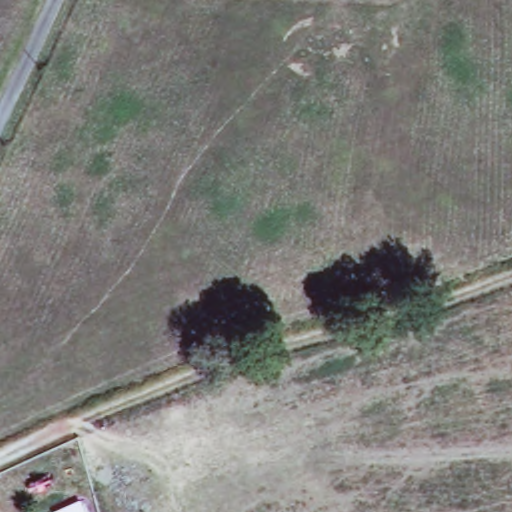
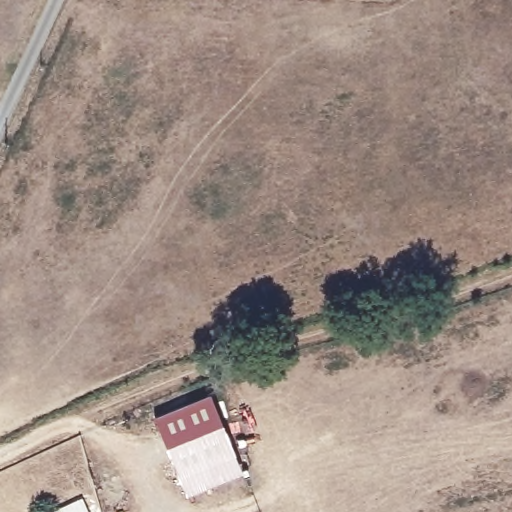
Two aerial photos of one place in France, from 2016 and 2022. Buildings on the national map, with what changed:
new [(187,497),(155,417),(211,395),(246,473),(187,497)]
new [(82,512),(58,512),(77,502),(82,512)]

